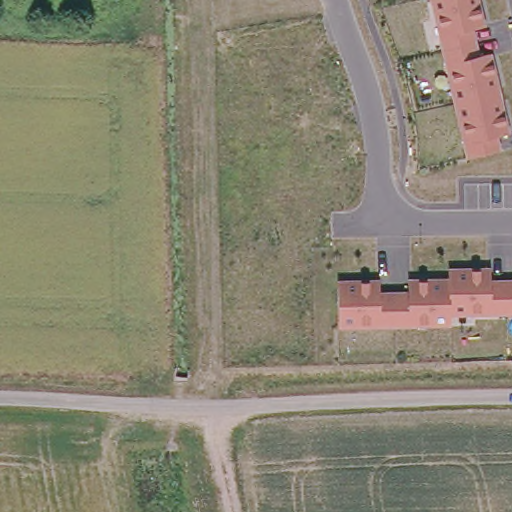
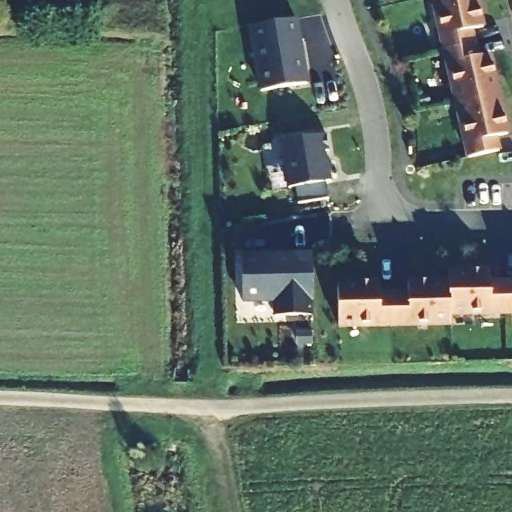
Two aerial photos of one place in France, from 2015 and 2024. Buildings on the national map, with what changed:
unchanged [(487,26),(475,29),(480,54),(492,52),(509,130),(498,134),(502,150),(469,158),(433,0),(481,0),(487,26)]
new [(296,18),(307,83),(262,91),(250,26),(296,18)]
new [(330,181),(327,181),(329,198),(300,203),(296,186),(289,187),(282,141),(325,133),(329,149),(325,149),(330,181)]
new [(273,302),(244,303),(243,253),(311,251),(312,314),(273,315),(273,302)]
unchanged [(380,278),(382,290),(410,290),(409,276),(449,276),(450,266),(491,266),(492,278),(512,278),(512,313),(450,315),(451,326),(342,327),(340,279),(380,278)]

